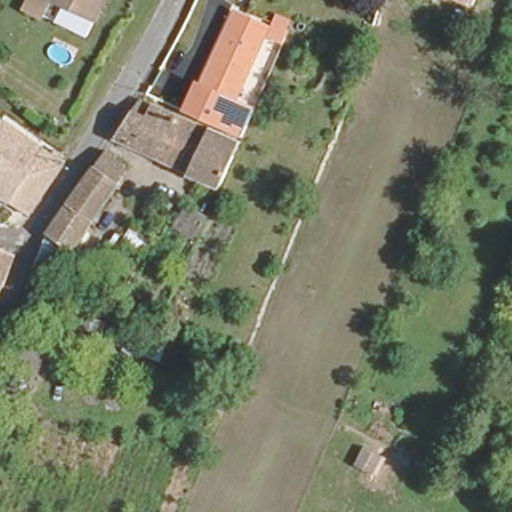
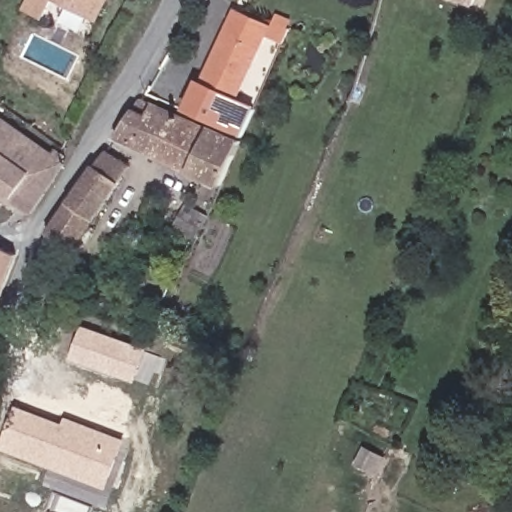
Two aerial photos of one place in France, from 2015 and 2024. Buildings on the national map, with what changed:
unchanged [(55,1),(52,0),(95,0),(90,10),(86,19),(55,1)]
unchanged [(471,7),(454,0),(474,0),(471,7)]
unchanged [(229,23),(224,21),(230,7),(264,22),(255,41),(232,96),(197,81),(221,27),(226,29),(229,23)]
unchanged [(267,17),(283,24),(278,37),(261,30),(264,22),(267,17)]
new [(256,105),(242,135),(184,109),(197,81),(224,92),(232,96),(256,105)]
unchanged [(212,134),(215,130),(240,145),(217,183),(118,128),(140,90),(212,134)]
unchanged [(0,188),(0,118),(0,117),(55,150),(59,144),(67,149),(64,155),(68,158),(30,207),(0,188)]
unchanged [(128,159),(124,165),(137,174),(130,184),(116,175),(72,243),(51,230),(106,145),(128,159)]
unchanged [(10,240),(10,254),(10,266),(0,285),(0,234),(10,240)]
new [(132,382),(119,376),(60,351),(71,324),(131,348),(145,355),(132,382)]
unchanged [(28,389),(1,380),(19,333),(49,347),(28,389)]
new [(11,408),(60,427),(62,420),(120,443),(106,477),(101,488),(0,448),(0,436),(11,408)]

